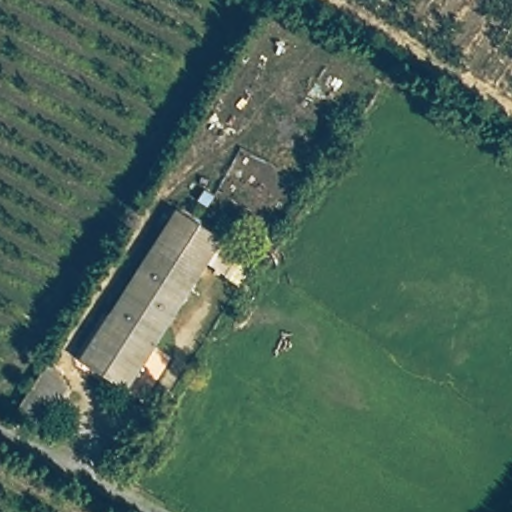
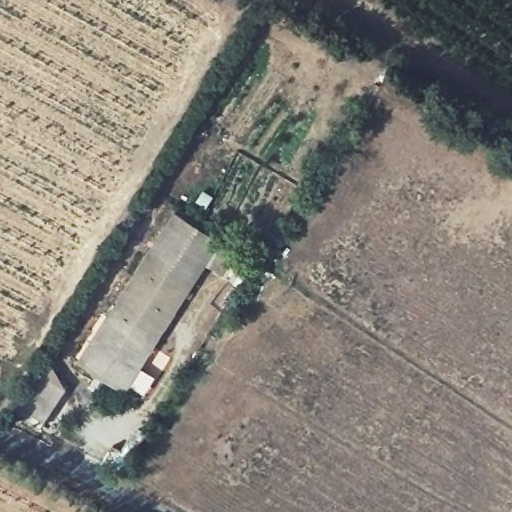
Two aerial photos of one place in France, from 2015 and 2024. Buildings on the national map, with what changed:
unchanged [(128,390),(81,361),(176,209),(223,238),(128,390)]
unchanged [(50,358),(66,369),(58,380),(68,387),(46,418),(19,405),(50,358)]

